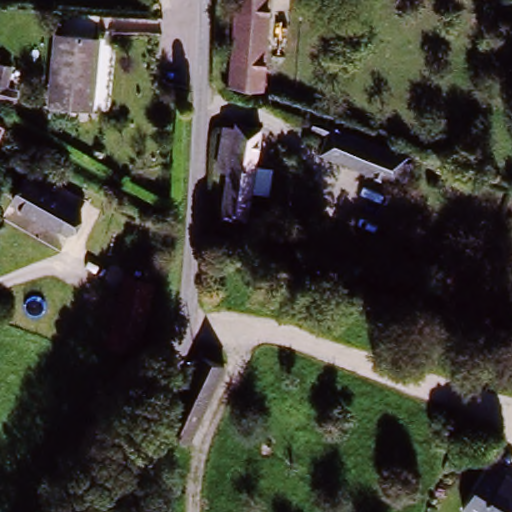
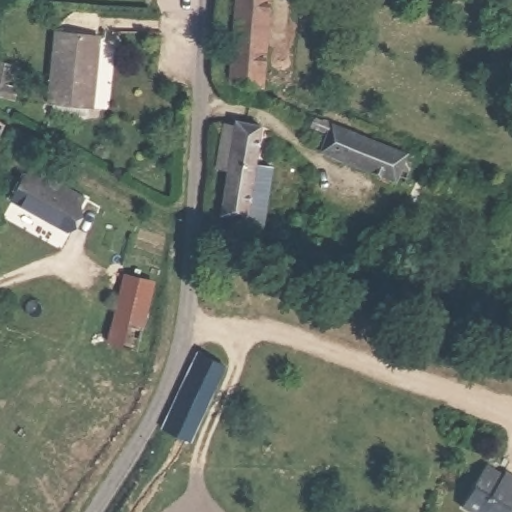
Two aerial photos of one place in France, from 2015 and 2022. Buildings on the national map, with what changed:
unchanged [(232,88),(238,0),(269,0),(264,90),(232,88)]
unchanged [(52,116),(60,51),(62,24),(92,26),(90,54),(83,119),(52,116)]
unchanged [(270,220),(250,220),(251,215),(225,214),(227,166),(215,166),(217,129),(230,129),(230,119),(256,120),(254,157),(270,158),(269,182),(252,182),(252,197),(271,198),(270,220)]
unchanged [(418,154),(408,179),(331,152),(334,144),(320,138),(326,121),(418,154)]
unchanged [(68,228),(13,201),(29,169),(82,196),(68,228)]
unchanged [(130,361),(104,351),(130,268),(155,277),(130,361)]
unchanged [(185,446),(156,431),(197,348),(227,363),(185,446)]
unchanged [(502,512),(465,512),(457,507),(481,465),(512,480),(512,495),(512,496),(512,512),(506,512),(503,511),(502,512)]

